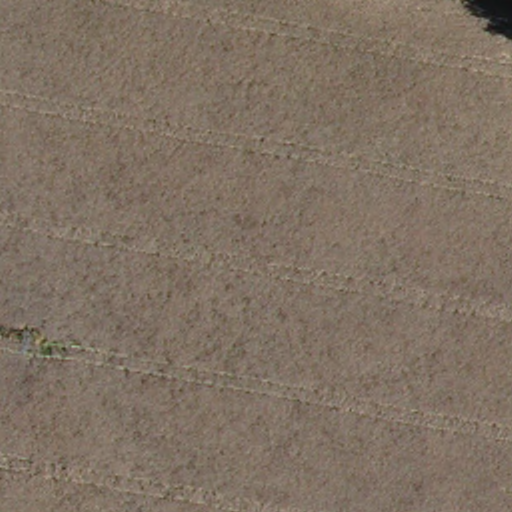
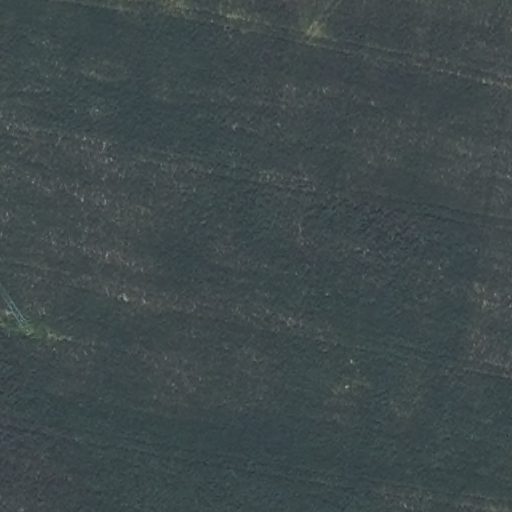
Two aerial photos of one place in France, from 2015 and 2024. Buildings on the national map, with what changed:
[]

